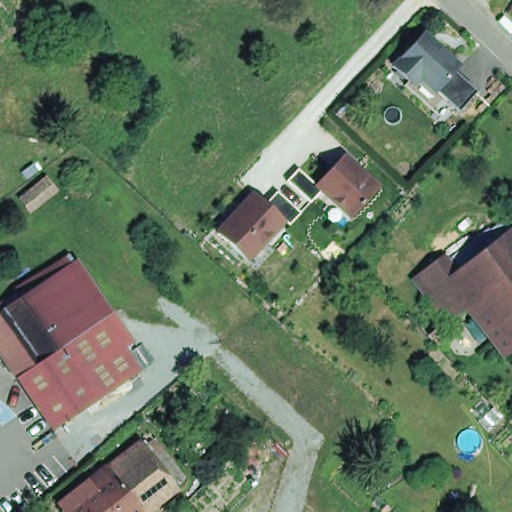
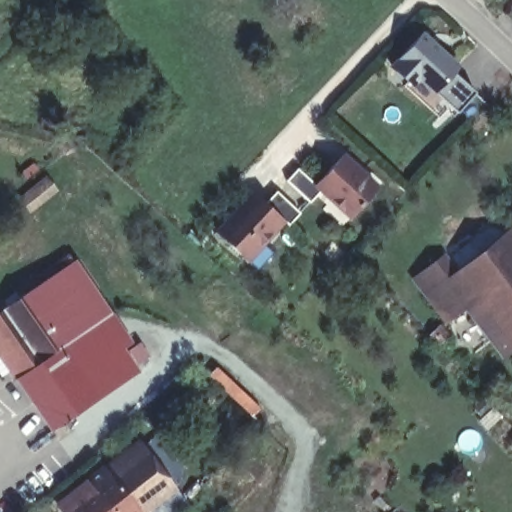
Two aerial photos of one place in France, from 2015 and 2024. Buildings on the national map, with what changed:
unchanged [(0,0),(3,0),(0,3),(0,0)]
unchanged [(402,57),(397,54),(425,29),(458,63),(471,86),(451,110),(442,103),(433,114),(392,69),(402,57)]
unchanged [(362,170),(377,183),(350,212),(321,185),(309,198),(285,176),(297,164),(316,180),(342,151),(362,170)]
unchanged [(217,228),(253,189),(264,199),(275,187),(299,209),(287,221),(282,216),(246,255),(217,228)]
unchanged [(55,190),(62,200),(39,218),(32,208),(55,190)]
unchanged [(502,358),(467,306),(446,325),(411,280),(446,252),(459,267),(512,227),(512,351),(502,358)]
unchanged [(97,403),(97,402),(22,295),(65,266),(139,375),(97,403)]
unchanged [(97,402),(51,432),(0,355),(0,310),(22,295),(97,402)]
unchanged [(67,508),(54,492),(72,477),(86,495),(97,486),(149,446),(179,486),(145,512),(70,512),(67,508)]

